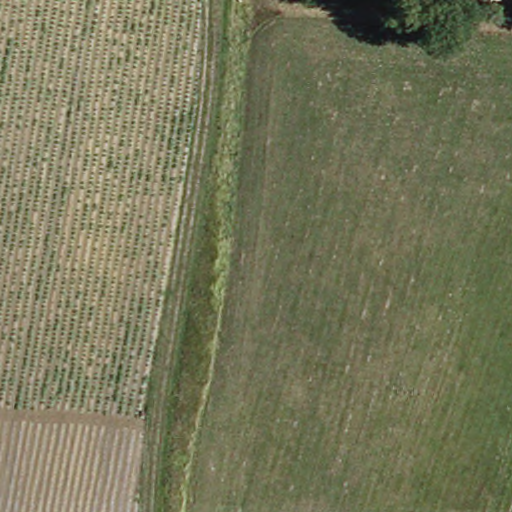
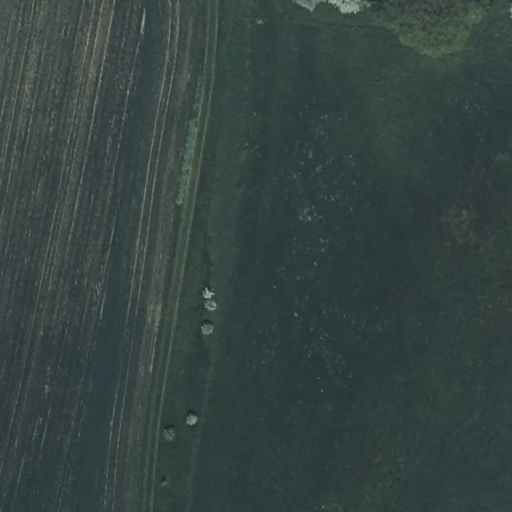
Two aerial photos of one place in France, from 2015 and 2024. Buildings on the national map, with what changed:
[]

